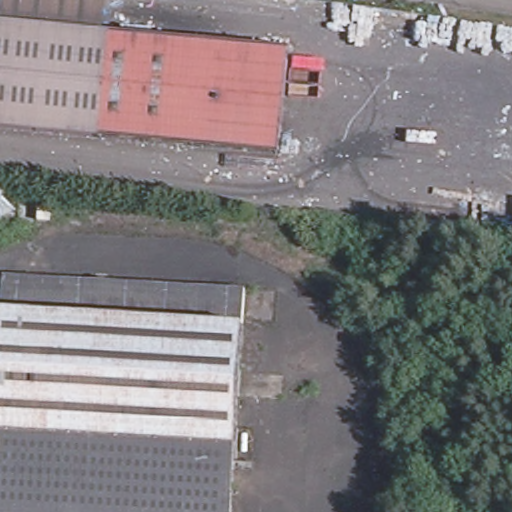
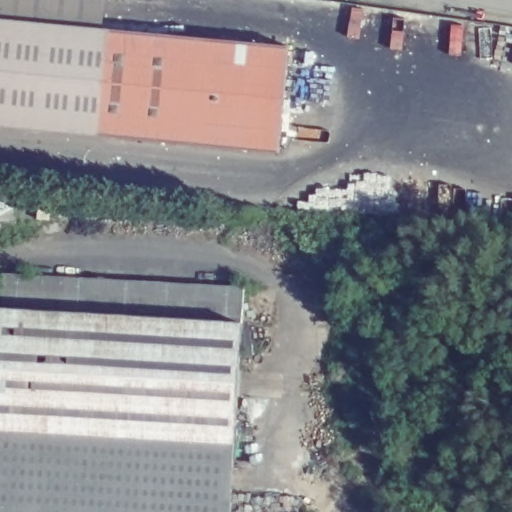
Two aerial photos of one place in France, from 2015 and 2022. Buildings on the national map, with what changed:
unchanged [(94,0),(90,29),(0,18),(0,0),(94,0)]
unchanged [(90,29),(285,50),(272,158),(0,127),(0,18),(90,29)]
unchanged [(239,284),(230,512),(0,512),(0,275),(239,284)]

